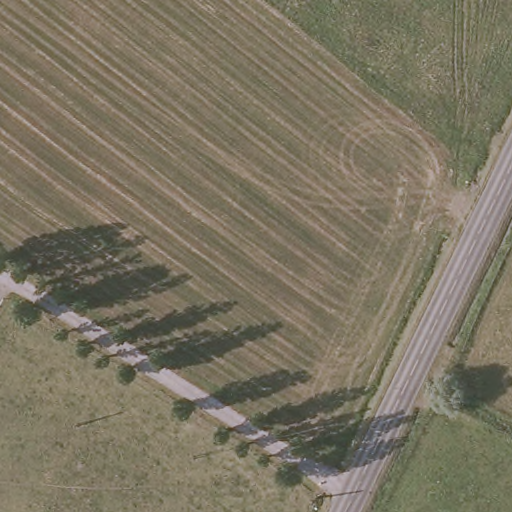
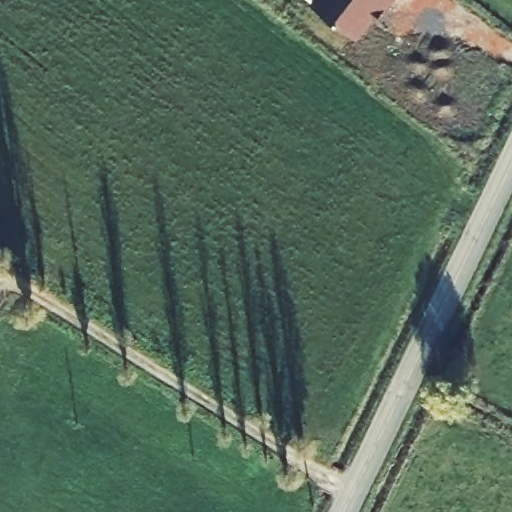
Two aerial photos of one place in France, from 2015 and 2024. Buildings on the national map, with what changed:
new [(358,41),(310,4),(314,0),(395,0),(387,11),(385,9),(375,23),(372,21),(358,41)]

